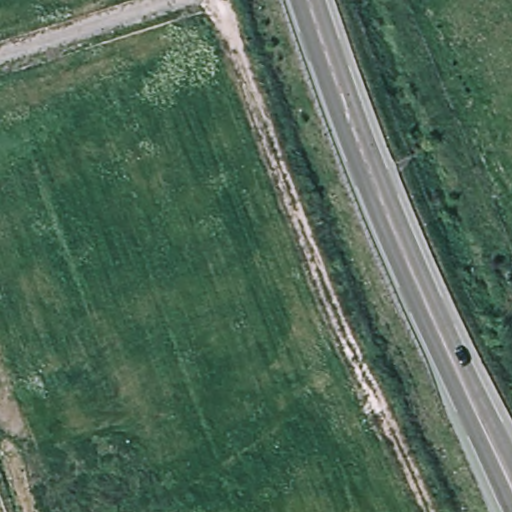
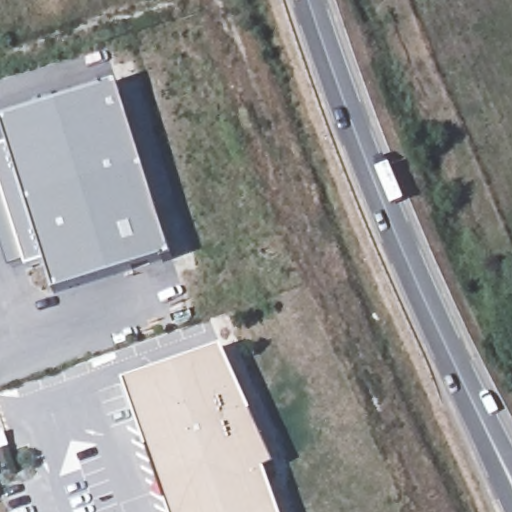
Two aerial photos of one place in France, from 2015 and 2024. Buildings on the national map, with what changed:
new [(10,149),(2,124),(117,85),(173,261),(57,298),(47,268),(27,272),(26,268),(11,272),(0,237),(0,152),(10,149)]
new [(219,348),(227,370),(128,405),(120,383),(219,348)]
new [(262,469),(252,474),(266,512),(166,512),(128,405),(227,370),(262,469)]
new [(2,433),(6,444),(0,447),(0,434),(2,433)]

